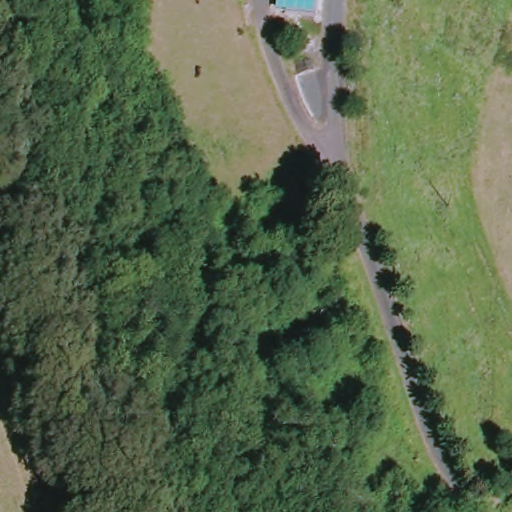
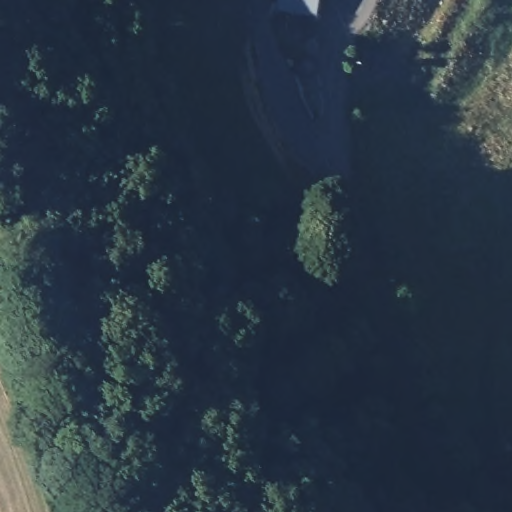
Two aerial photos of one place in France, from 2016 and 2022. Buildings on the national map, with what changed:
unchanged [(299,23),(300,13),(280,11),(282,0),(319,0),(315,24),(299,23)]
unchanged [(306,73),(297,77),(292,66),(300,60),(306,73)]
unchanged [(307,76),(319,77),(326,111),(317,113),(305,100),(307,76)]

